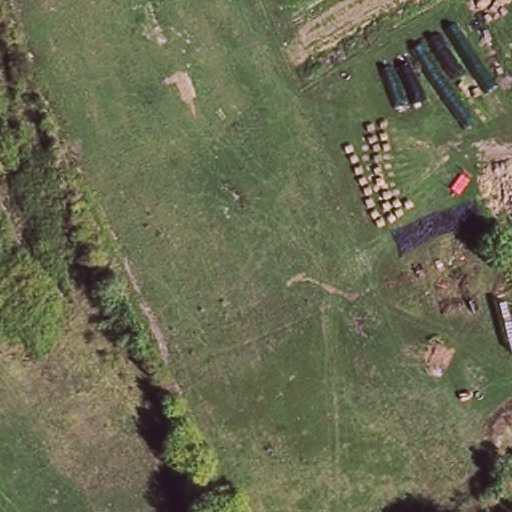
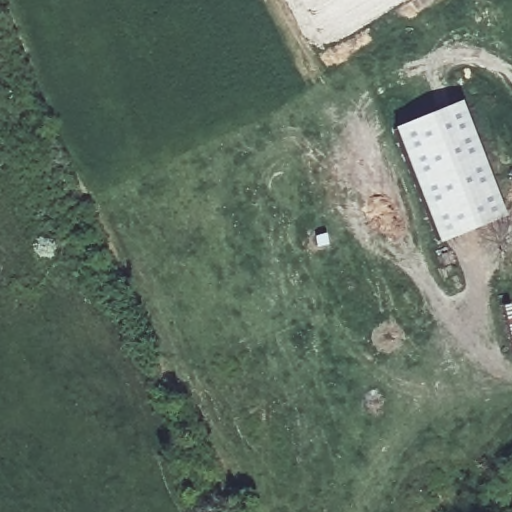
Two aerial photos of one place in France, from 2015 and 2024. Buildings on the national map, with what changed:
new [(454,106),(498,218),(434,243),(390,132),(454,106)]

